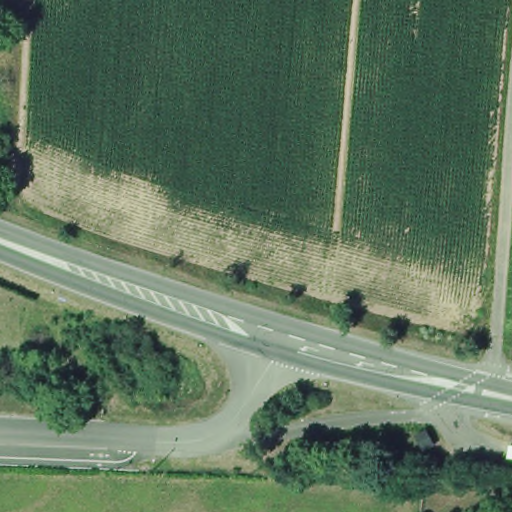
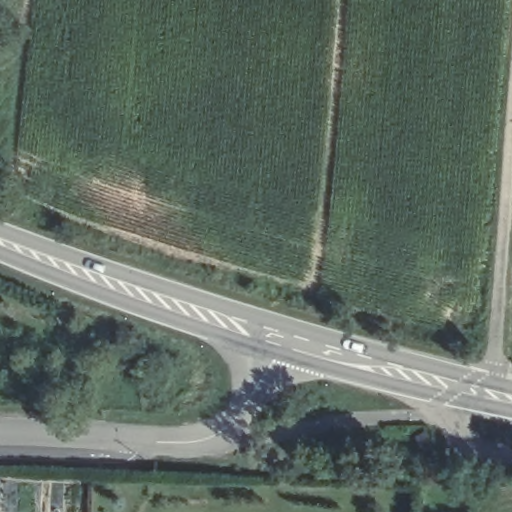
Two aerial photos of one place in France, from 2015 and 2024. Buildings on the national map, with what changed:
[]

